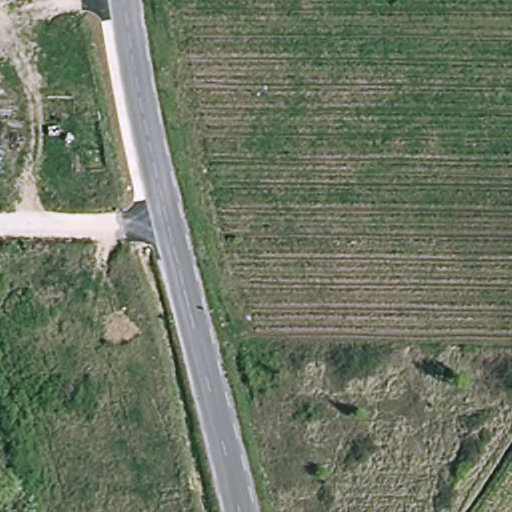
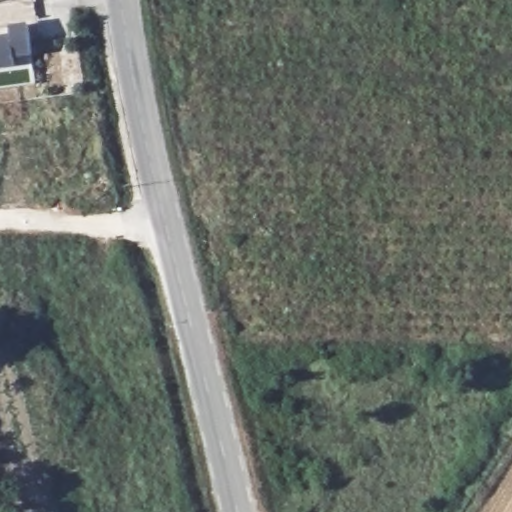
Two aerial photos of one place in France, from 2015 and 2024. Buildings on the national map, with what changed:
new [(12,26),(29,25),(32,56),(14,59),(15,67),(0,69),(0,36),(13,35),(12,26)]

